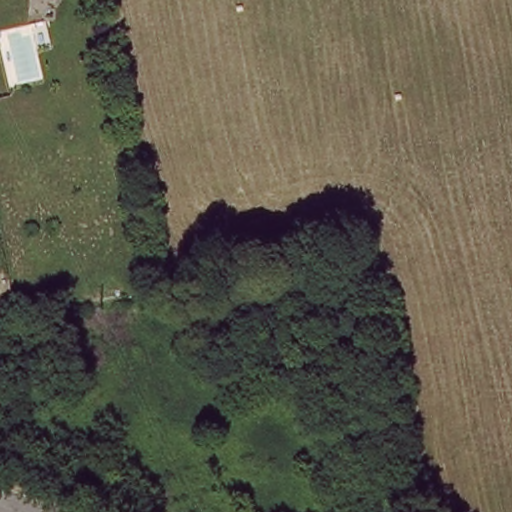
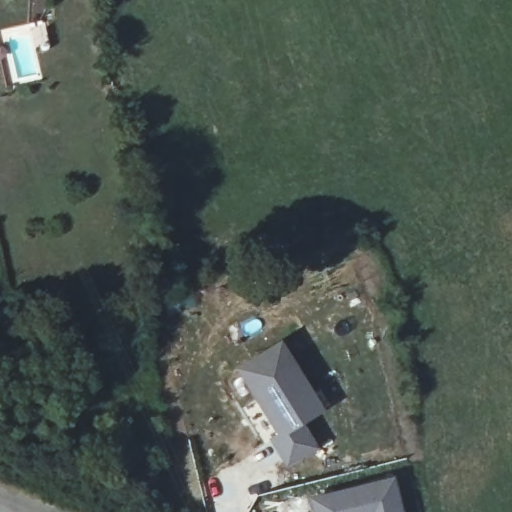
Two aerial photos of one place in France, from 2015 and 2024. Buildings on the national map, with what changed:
new [(286,344),(327,414),(284,440),(241,370),(286,344)]
new [(397,480),(404,512),(316,512),(313,498),(397,480)]

